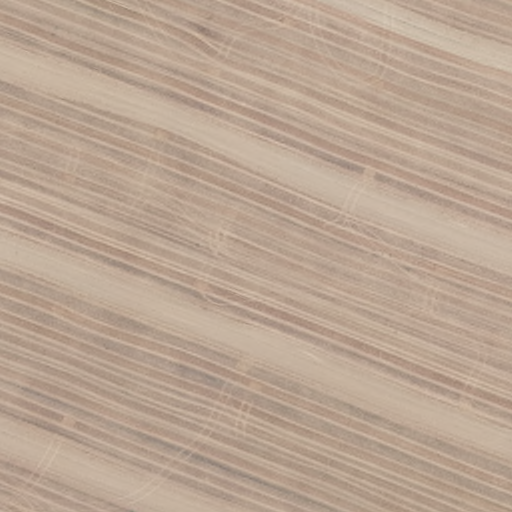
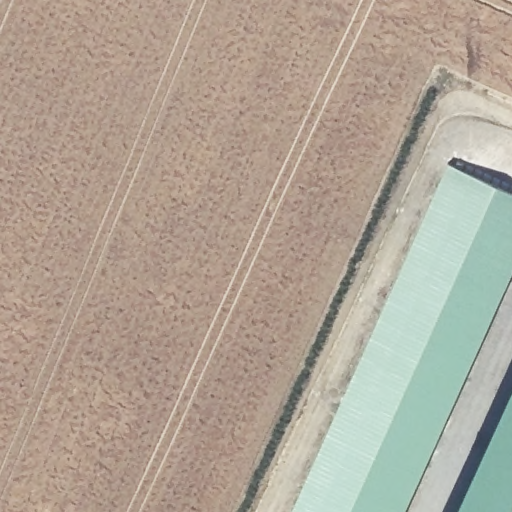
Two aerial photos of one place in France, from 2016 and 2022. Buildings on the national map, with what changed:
new [(289,512),(447,164),(512,194),(512,271),(403,512),(289,512)]
new [(512,512),(460,512),(512,398),(512,512)]

